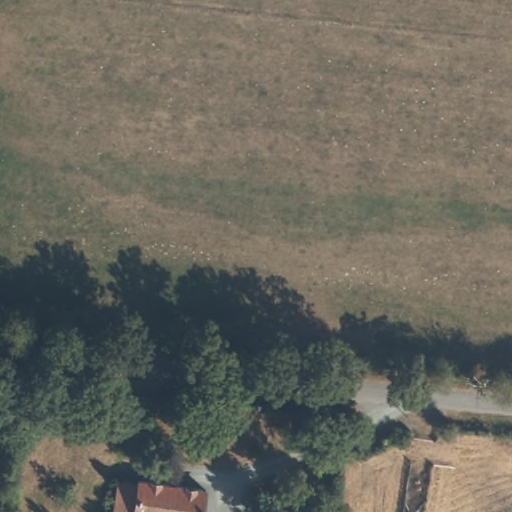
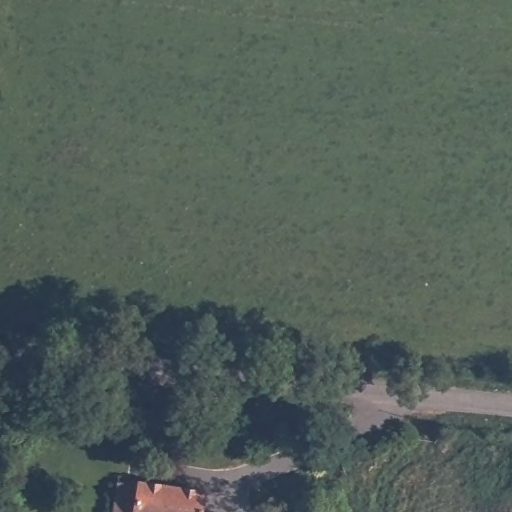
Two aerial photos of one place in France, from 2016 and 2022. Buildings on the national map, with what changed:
unchanged [(188,406),(187,419),(172,416),(174,404),(188,406)]
unchanged [(202,512),(111,512),(116,481),(139,484),(140,479),(205,489),(202,512)]

